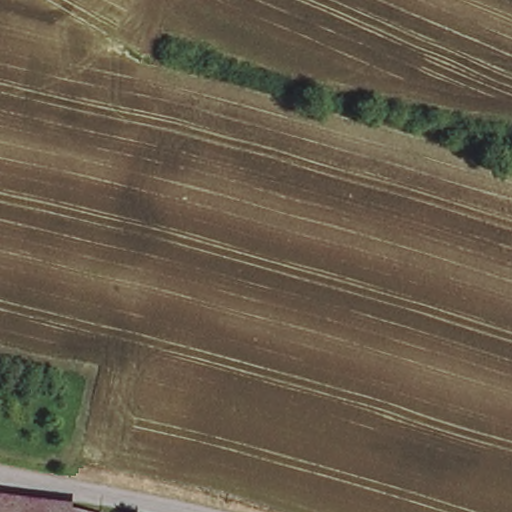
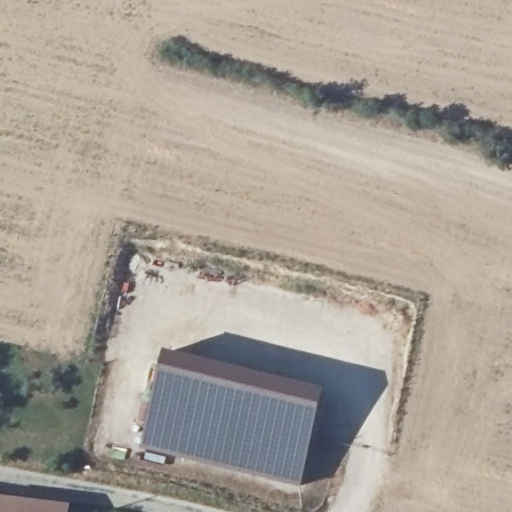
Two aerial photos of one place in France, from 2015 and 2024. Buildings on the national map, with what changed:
new [(166,350),(219,361),(327,388),(302,487),(166,455),(164,463),(145,458),(147,450),(142,448),(166,350)]
unchanged [(68,508),(68,511),(67,512),(0,512),(0,499),(68,508)]
unchanged [(68,511),(76,512),(67,512),(68,511)]

